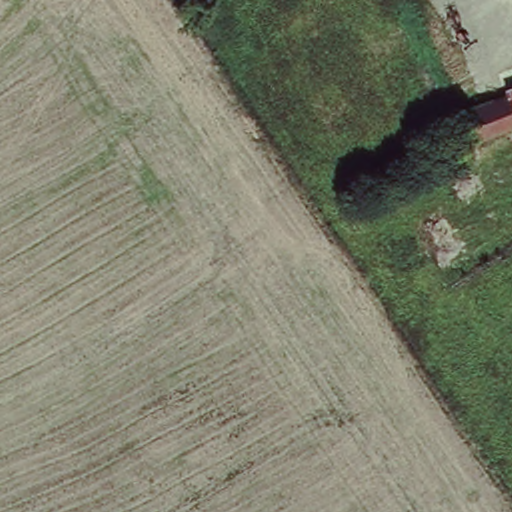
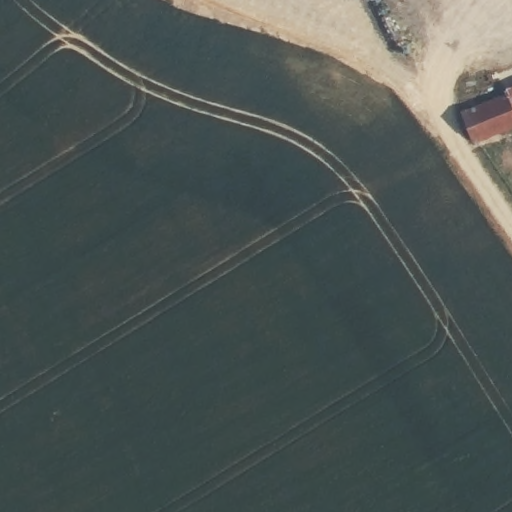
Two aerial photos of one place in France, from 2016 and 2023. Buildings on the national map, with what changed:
unchanged [(470,146),(459,113),(505,96),(502,90),(512,86),(512,129),(470,146)]

